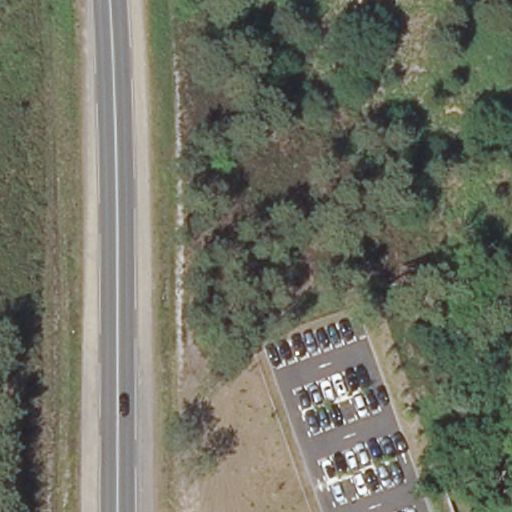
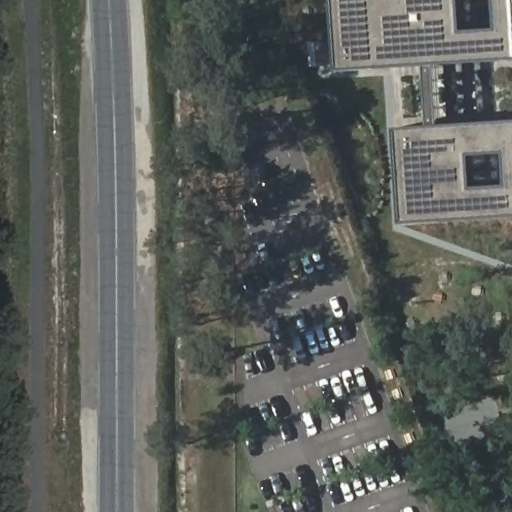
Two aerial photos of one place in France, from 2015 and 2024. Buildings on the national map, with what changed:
new [(338,70),(333,0),(512,0),(512,59),(338,70)]
new [(401,223),(395,130),(512,123),(512,216),(401,223)]

